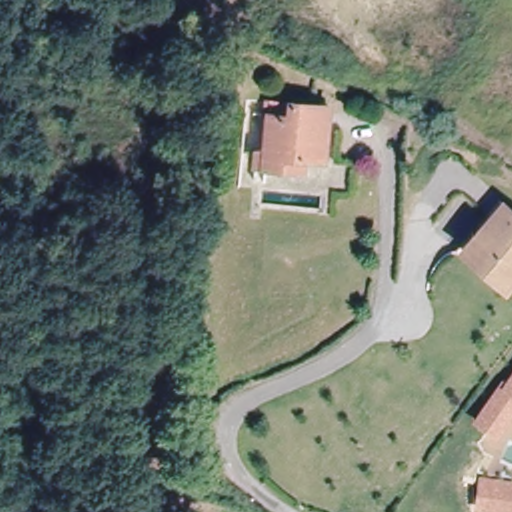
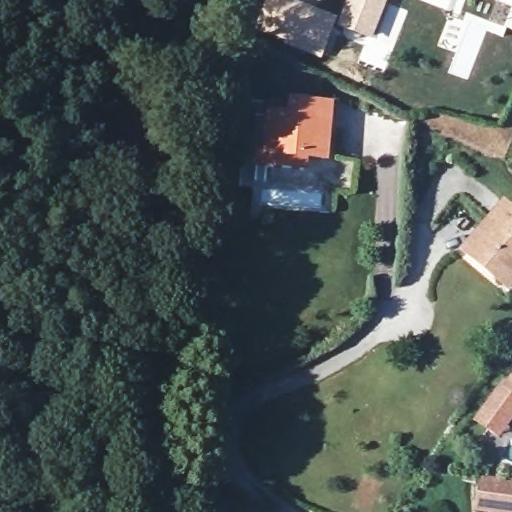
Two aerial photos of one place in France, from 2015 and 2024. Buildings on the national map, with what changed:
new [(283,45),(285,40),(256,30),(267,0),(291,0),(337,19),(321,61),(283,45)]
new [(337,28),(347,0),(389,0),(372,42),(337,28)]
unchanged [(327,160),(307,159),(306,172),(266,169),(270,117),(289,117),(291,104),(331,107),(327,160)]
unchanged [(487,272),(463,252),(488,223),(503,206),(511,212),(512,213),(512,284),(512,285),(507,290),(487,272)]
unchanged [(497,438),(473,421),(502,379),(505,381),(512,370),(512,417),(497,438)]
unchanged [(488,512),(475,510),(480,474),(512,479),(512,512),(488,512)]

